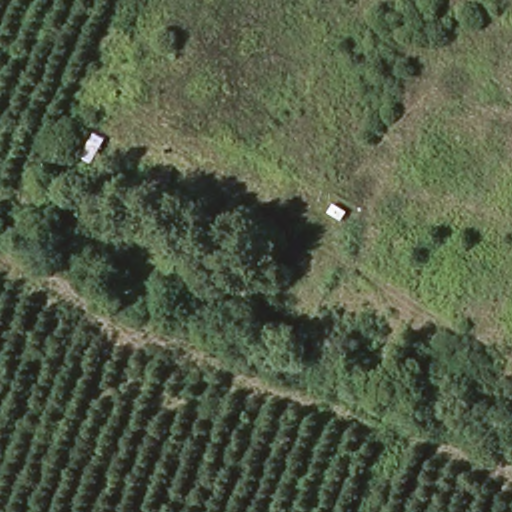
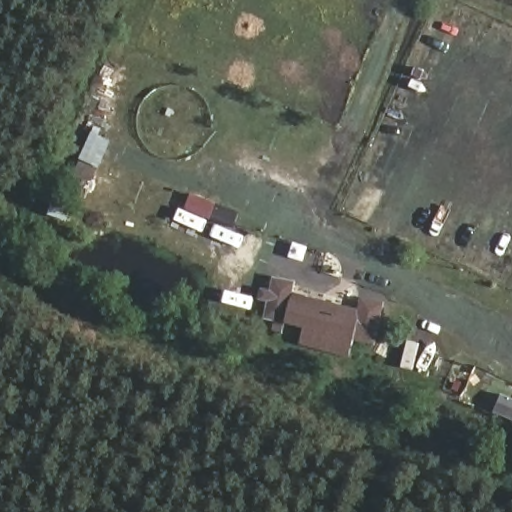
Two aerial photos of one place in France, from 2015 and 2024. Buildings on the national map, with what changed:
new [(284,325),(282,336),(271,332),(272,322),(264,320),(273,276),(296,281),(292,292),(357,309),(348,358),(298,347),(302,327),(284,325)]

